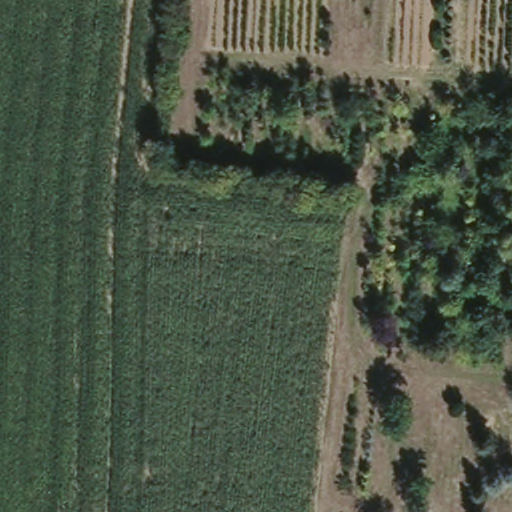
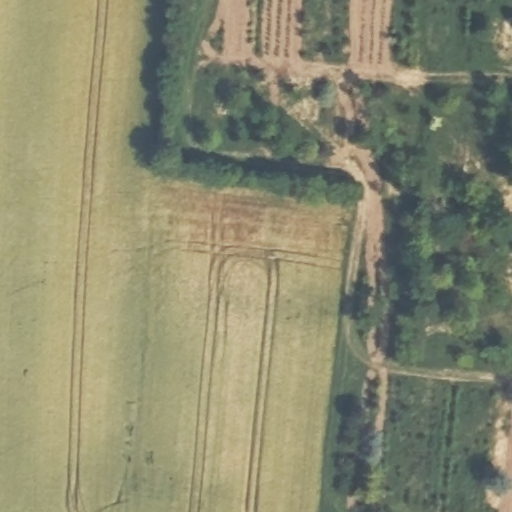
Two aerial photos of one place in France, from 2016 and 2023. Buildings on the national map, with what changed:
[]

